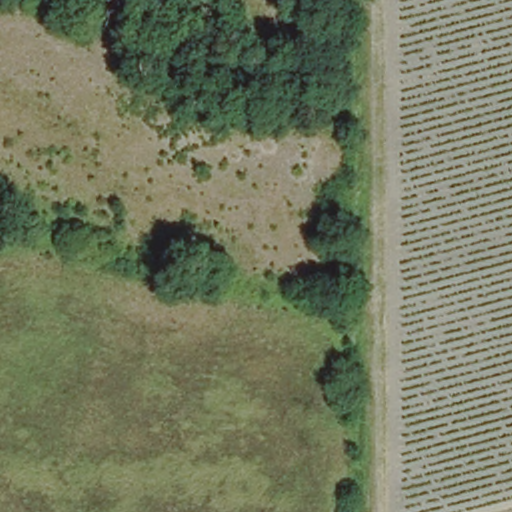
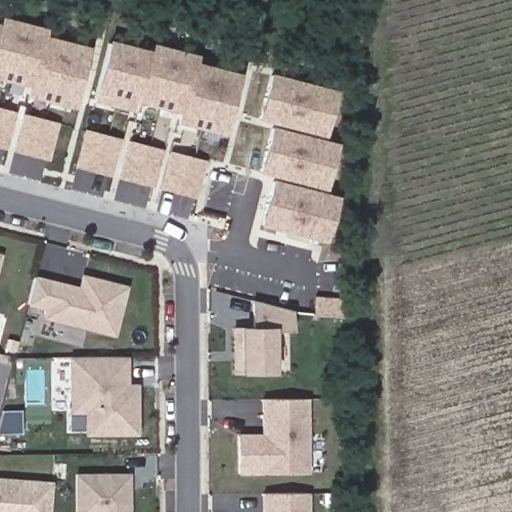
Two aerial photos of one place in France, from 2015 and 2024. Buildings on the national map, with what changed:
new [(33,39),(81,50),(68,108),(20,96),(21,89),(0,84),(0,21),(36,30),(33,39)]
new [(143,52),(143,46),(189,57),(188,65),(232,76),(218,137),(169,125),(171,116),(129,106),(127,114),(88,103),(100,43),(143,52)]
new [(328,92),(317,139),(249,123),(261,74),(328,92)]
new [(5,151),(0,150),(0,110),(13,114),(5,151)]
new [(56,124),(47,161),(9,151),(17,116),(56,124)]
new [(329,145),(319,192),(250,175),(262,129),(329,145)]
new [(118,140),(111,179),(71,169),(81,131),(118,140)]
new [(159,150),(151,189),(115,180),(123,141),(159,150)]
new [(202,162),(196,200),(157,190),(165,153),(202,162)]
new [(328,199),(319,245),(253,229),(262,182),(328,199)]
new [(31,278),(76,290),(80,277),(123,288),(111,335),(42,318),(44,310),(25,305),(31,278)]
new [(250,330),(249,301),(287,312),(287,331),(269,331),(270,374),(231,373),(230,330),(250,330)]
new [(123,357),(123,387),(133,387),(133,434),(84,435),(84,412),(69,412),(68,358),(123,357)]
new [(259,437),(259,401),(302,401),(303,474),(235,475),(235,437),(259,437)]
new [(125,475),(126,512),(73,512),(73,475),(125,475)]
new [(47,512),(0,512),(0,481),(49,485),(47,512)]
new [(258,495),(302,493),(302,512),(258,512),(258,495)]

